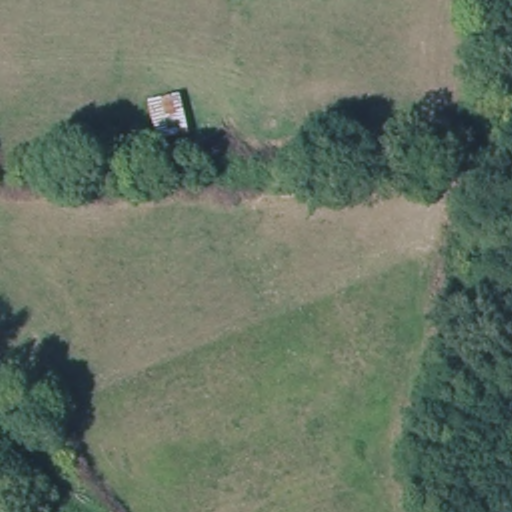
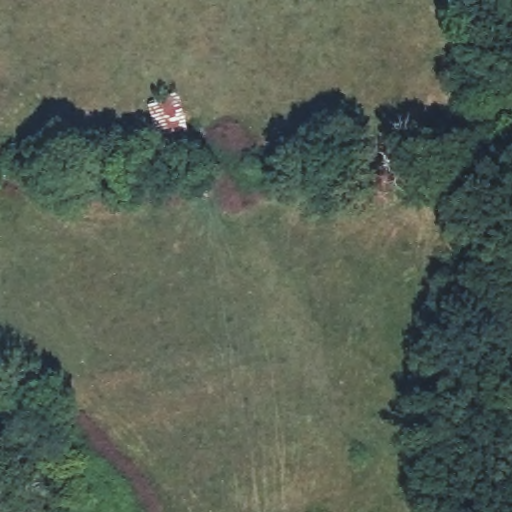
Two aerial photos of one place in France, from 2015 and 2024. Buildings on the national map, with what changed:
unchanged [(151,143),(146,96),(181,91),(189,135),(151,143)]

